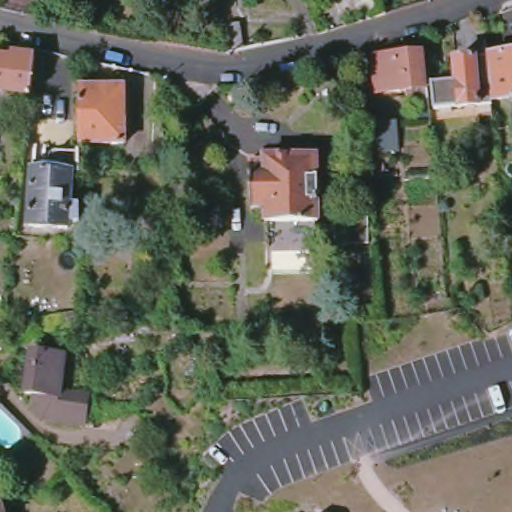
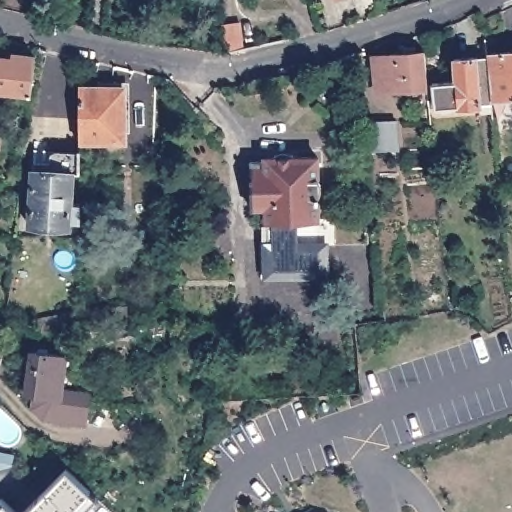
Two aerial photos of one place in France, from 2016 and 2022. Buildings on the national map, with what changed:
unchanged [(243,51),(225,55),(221,25),(239,23),(243,51)]
unchanged [(427,88),(375,92),(372,56),(425,52),(427,88)]
unchanged [(491,100),(488,73),(498,72),(495,54),(512,52),(512,98),(491,100)]
unchanged [(0,90),(0,57),(13,58),(13,54),(35,56),(31,93),(0,90)]
unchanged [(491,100),(493,114),(480,115),(479,105),(433,108),(431,83),(455,81),(454,59),(487,56),(488,73),(491,100)]
unchanged [(126,117),(129,117),(129,142),(85,142),(83,142),(83,86),(85,86),(103,86),(102,82),(120,82),(120,87),(126,87),(126,117)]
unchanged [(397,148),(370,149),(368,122),(395,121),(397,148)]
unchanged [(323,222),(270,222),(270,208),(255,208),(255,162),(270,161),(270,158),(279,157),(279,156),(280,155),(281,154),(282,154),(283,153),(284,153),(285,152),(286,152),(289,152),(290,152),(291,153),(293,153),(294,153),(295,153),(297,155),(298,155),(298,157),(322,157),(323,222)]
unchanged [(68,208),(80,208),(80,228),(68,227),(68,233),(28,231),(33,163),(56,164),(56,158),(80,159),(80,178),(68,178),(68,208)]
unchanged [(368,243),(338,243),(338,218),(368,218),(368,243)]
unchanged [(126,318),(85,320),(84,309),(125,306),(126,318)]
unchanged [(65,342),(63,327),(36,332),(34,320),(62,314),(65,327),(81,324),(98,323),(100,338),(65,342)]
unchanged [(61,390),(89,394),(85,425),(43,420),(32,409),(34,394),(25,393),(31,351),(65,356),(61,390)]
new [(65,467),(89,491),(68,512),(22,512),(65,467)]
new [(0,503),(3,500),(15,512),(0,512),(0,503)]

